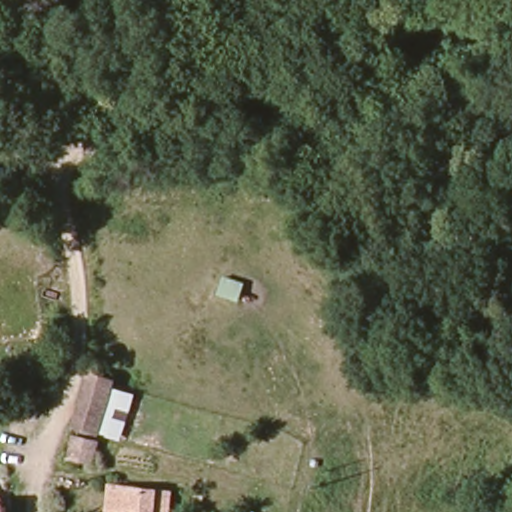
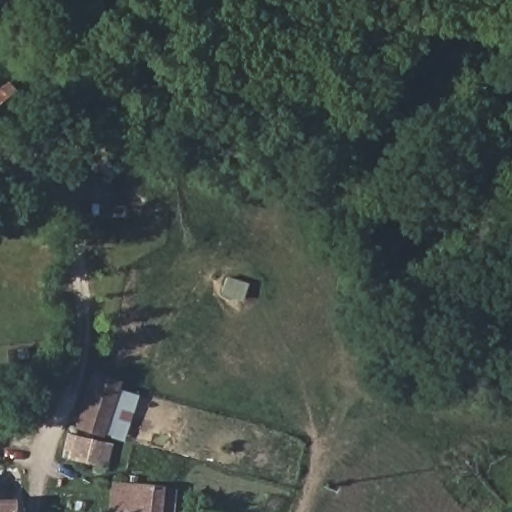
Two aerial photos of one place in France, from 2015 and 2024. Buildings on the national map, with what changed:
unchanged [(95,366),(120,373),(112,400),(105,424),(79,414),(87,390),(95,366)]
unchanged [(99,465),(77,459),(82,437),(105,442),(99,465)]
unchanged [(0,512),(0,483),(9,483),(11,512),(0,512)]
unchanged [(171,512),(110,512),(114,487),(173,495),(171,512)]

